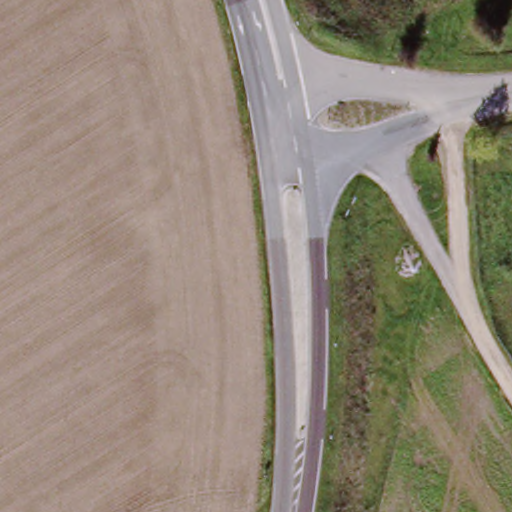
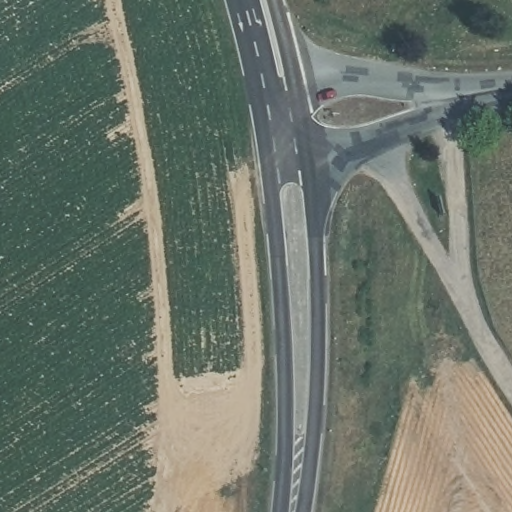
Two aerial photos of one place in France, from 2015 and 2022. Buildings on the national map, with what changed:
[]

